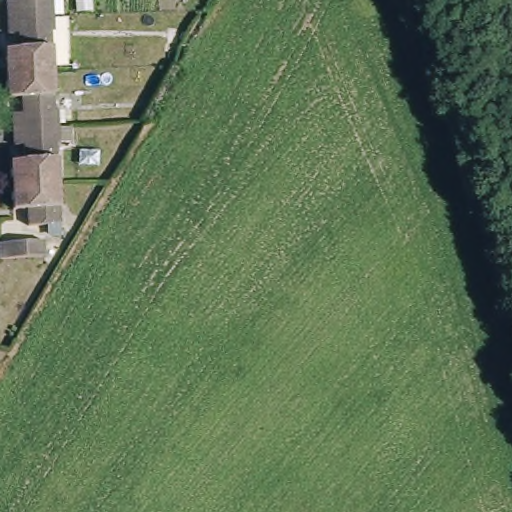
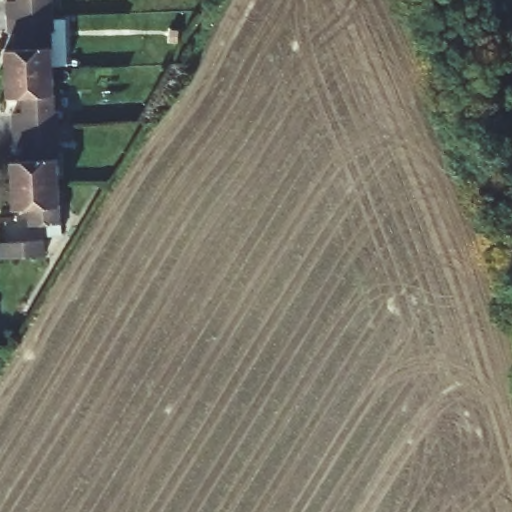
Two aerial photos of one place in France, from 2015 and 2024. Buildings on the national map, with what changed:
unchanged [(23,1),(23,0),(55,0),(60,0),(60,16),(15,18),(14,2),(23,1)]
unchanged [(11,51),(26,50),(25,34),(16,34),(15,18),(60,16),(62,31),(57,32),(59,71),(12,74),(11,51)]
unchanged [(20,114),(30,114),(28,97),(14,98),(12,74),(59,71),(61,108),(66,108),(67,127),(22,130),(20,114)]
unchanged [(17,161),(32,160),(32,145),(22,145),(22,130),(67,127),(68,143),(64,143),(66,181),(18,184),(17,161)]
unchanged [(68,224),(36,226),(35,209),(20,209),(18,184),(66,181),(68,224)]
unchanged [(44,259),(0,262),(0,243),(42,241),(44,259)]

